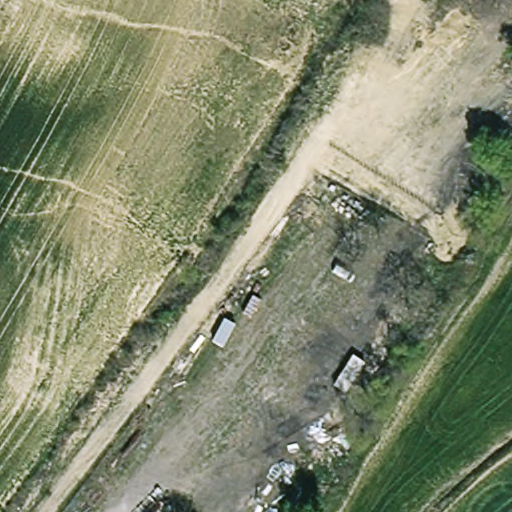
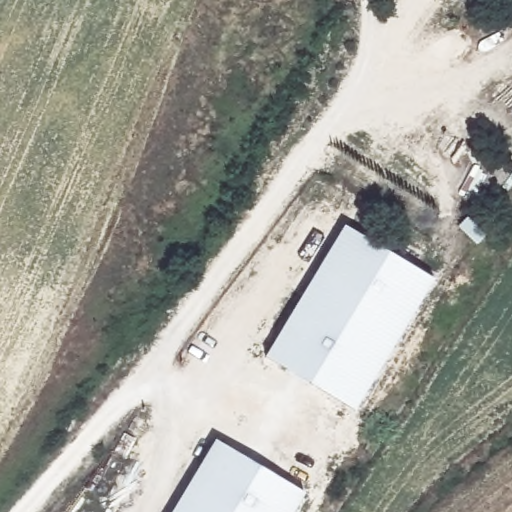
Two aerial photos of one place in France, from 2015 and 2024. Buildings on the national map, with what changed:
new [(435,281),(355,412),(265,357),(333,244),(321,239),(336,214),(347,220),(345,226),(435,281)]
new [(305,495),(295,512),(172,512),(215,440),(305,495)]

